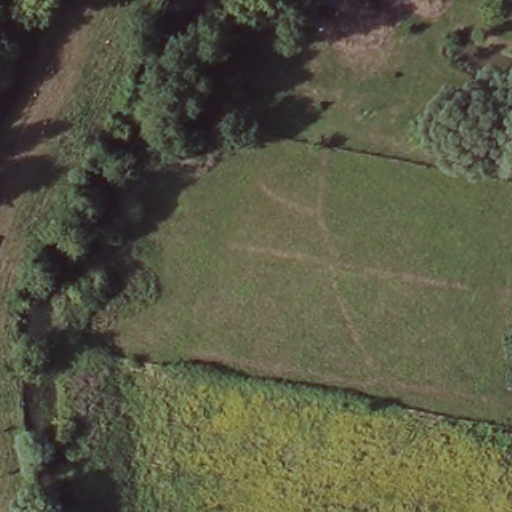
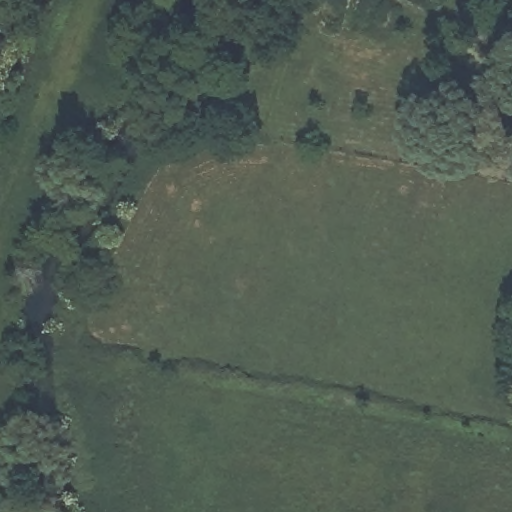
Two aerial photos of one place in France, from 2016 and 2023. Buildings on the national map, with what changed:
[]

